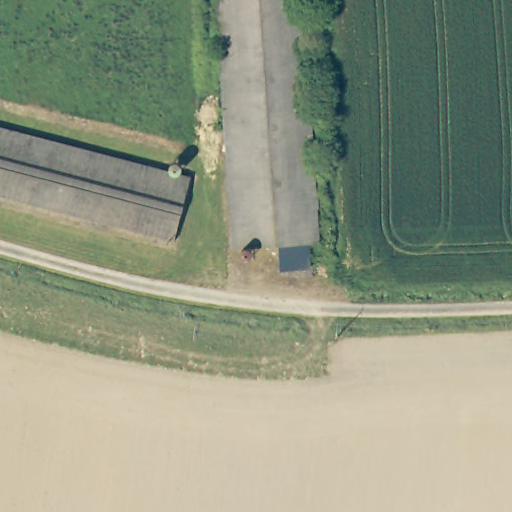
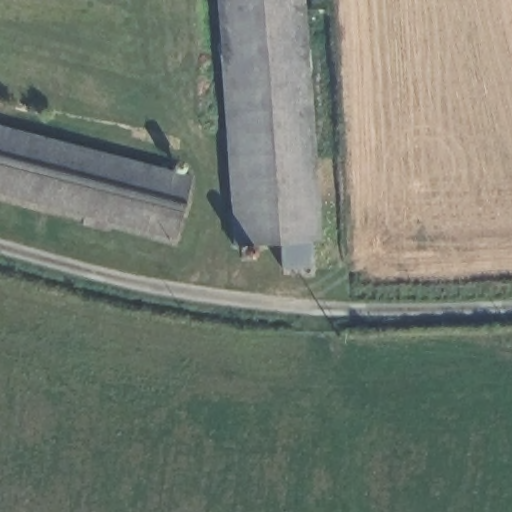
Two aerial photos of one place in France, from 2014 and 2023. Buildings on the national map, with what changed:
unchanged [(280,270),(278,245),(234,248),(214,0),(304,0),(318,242),(307,243),(310,267),(280,270)]
unchanged [(190,172),(174,237),(0,192),(0,123),(190,172)]

